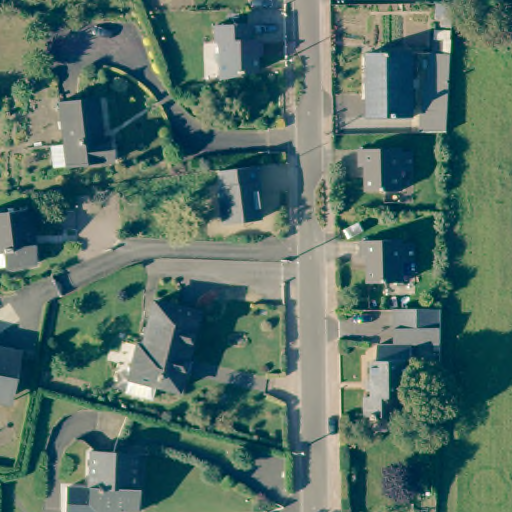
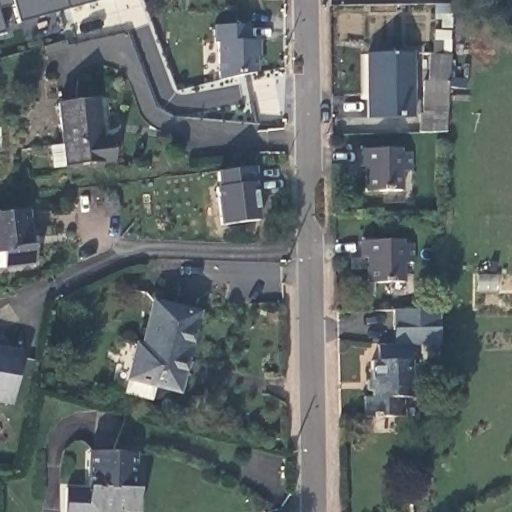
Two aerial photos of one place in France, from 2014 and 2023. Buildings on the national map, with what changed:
new [(12,7),(0,10),(0,0),(103,0),(17,22),(12,7)]
new [(0,34),(0,22),(2,33),(0,34)]
unchanged [(248,27),(249,43),(256,43),(256,74),(256,76),(219,83),(218,45),(215,45),(214,28),(248,27)]
unchanged [(421,117),(423,117),(425,84),(431,84),(432,57),(432,38),(449,38),(449,57),(447,132),(421,131),(421,117)]
unchanged [(412,52),(412,115),(368,116),(367,53),(412,52)]
unchanged [(99,96),(102,137),(112,137),(114,160),(69,164),(56,166),(53,145),(67,144),(62,99),(99,96)]
unchanged [(397,148),(397,152),(408,152),(408,170),(397,170),(397,190),(363,191),(362,166),(357,166),(356,149),(397,148)]
unchanged [(255,168),(256,182),(260,221),(220,227),(215,187),(220,187),(219,172),(255,168)]
unchanged [(1,252),(0,252),(0,212),(32,209),(38,264),(14,266),(2,268),(1,255),(1,252)]
unchanged [(398,240),(398,243),(409,243),(409,262),(398,262),(398,282),(364,282),(364,257),(357,257),(357,240),(398,240)]
unchanged [(122,334),(142,339),(147,341),(159,297),(203,308),(182,384),(160,378),(156,393),(130,386),(111,381),(122,334)]
unchanged [(411,344),(412,395),(403,395),(404,415),(380,416),(380,418),(373,418),(373,416),(367,416),(367,396),(372,396),(372,359),(377,359),(377,345),(392,344),(393,307),(432,306),(441,306),(440,344),(411,344)]
unchanged [(9,402),(0,400),(0,356),(17,359),(9,402)]
unchanged [(126,512),(118,512),(94,512),(93,511),(92,512),(63,512),(65,486),(86,488),(87,451),(134,454),(132,478),(130,477),(130,488),(136,489),(134,511),(134,512),(126,512)]

